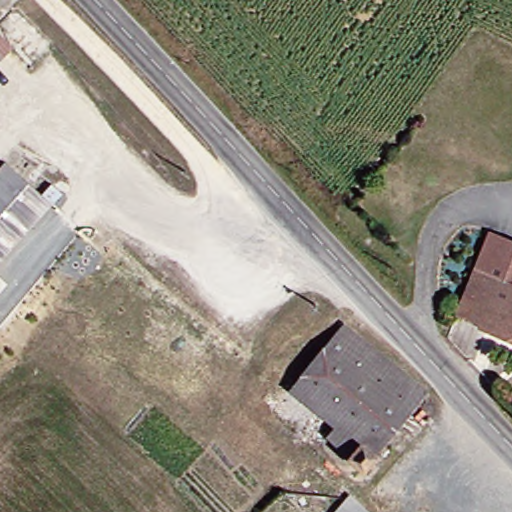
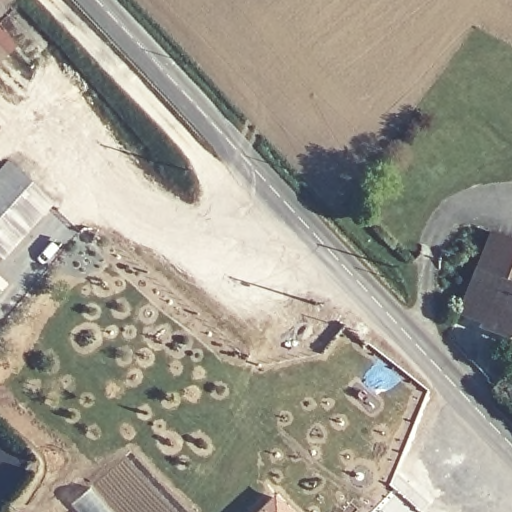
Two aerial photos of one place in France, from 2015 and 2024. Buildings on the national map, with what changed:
unchanged [(0,20),(0,11),(5,16),(0,20)]
unchanged [(0,69),(0,40),(15,56),(0,69)]
unchanged [(46,201),(57,189),(65,196),(54,209),(0,266),(0,178),(10,168),(46,201)]
unchanged [(480,329),(483,318),(462,310),(458,309),(477,262),(492,268),(495,264),(510,269),(508,274),(511,274),(512,270),(512,340),(480,329)]
demolished [(363,476),(322,446),(332,433),(285,397),(334,335),(330,331),(335,324),(402,370),(425,392),(363,476)]
new [(259,512),(276,495),(292,512),(259,512)]
demolished [(363,512),(364,510),(366,512),(363,512)]

